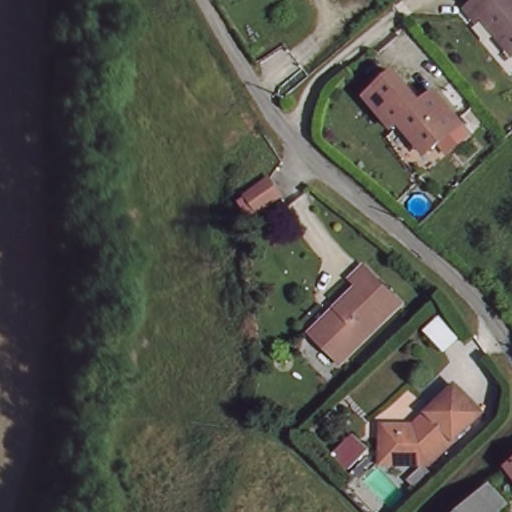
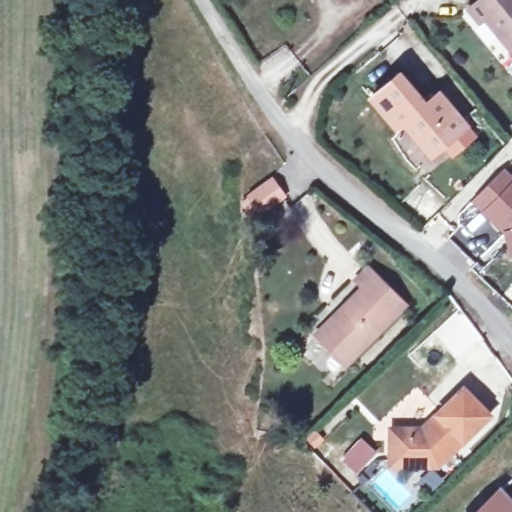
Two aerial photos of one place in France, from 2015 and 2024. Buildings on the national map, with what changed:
unchanged [(512,44),(507,39),(504,41),(490,24),(484,28),(470,10),(482,1),(480,0),(512,0),(512,44)]
unchanged [(292,59),(267,75),(255,58),(281,42),(292,59)]
unchanged [(422,106),(436,95),(464,126),(434,150),(409,120),(395,131),(370,101),(398,79),(422,106)]
new [(512,256),(510,257),(504,233),(470,202),(504,168),(512,177),(512,256)]
unchanged [(288,204),(267,218),(247,190),(267,175),(288,204)]
unchanged [(405,306),(347,360),(324,337),(347,315),(340,308),(362,287),(357,282),(369,270),(405,306)]
unchanged [(426,432),(467,395),(491,420),(439,470),(390,465),(392,442),(393,429),(410,431),(426,432)]
unchanged [(512,507),(512,512),(475,512),(498,491),(512,507)]

